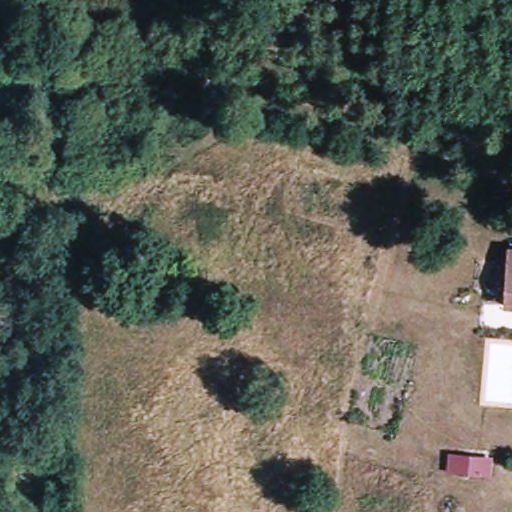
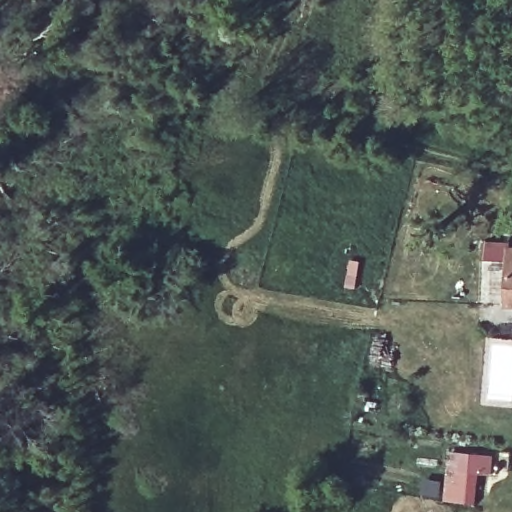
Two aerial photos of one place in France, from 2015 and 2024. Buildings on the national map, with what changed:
unchanged [(509,248),(512,249),(512,303),(503,302),(509,248)]
new [(451,451),(494,455),(493,473),(480,473),(476,502),(446,500),(451,451)]

